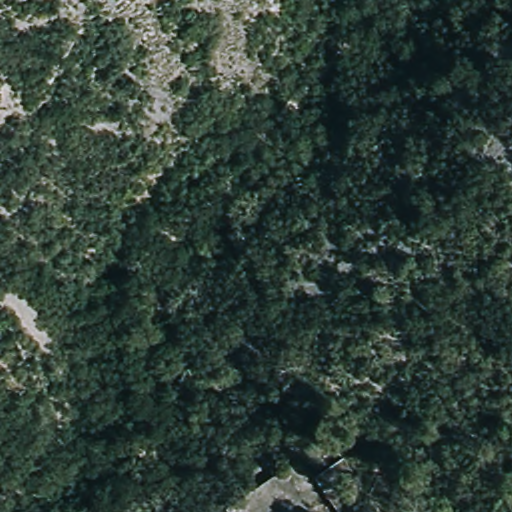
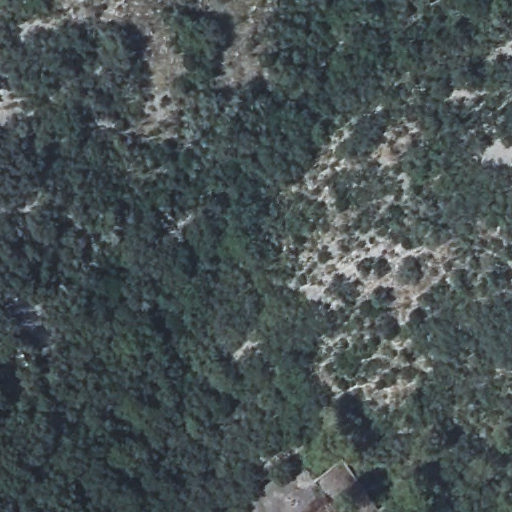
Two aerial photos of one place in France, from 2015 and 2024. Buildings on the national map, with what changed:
unchanged [(372,507),(366,512),(335,512),(313,480),(343,459),(372,507)]

